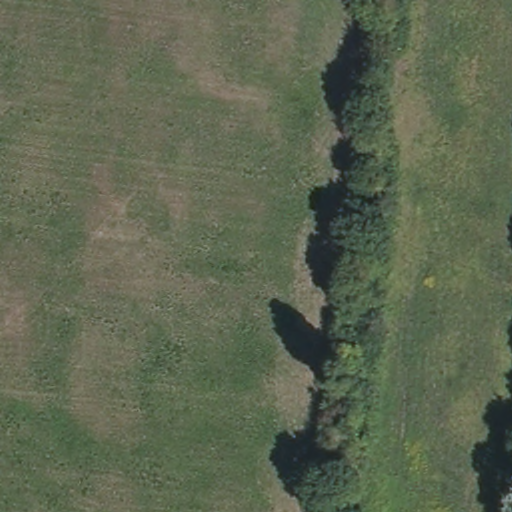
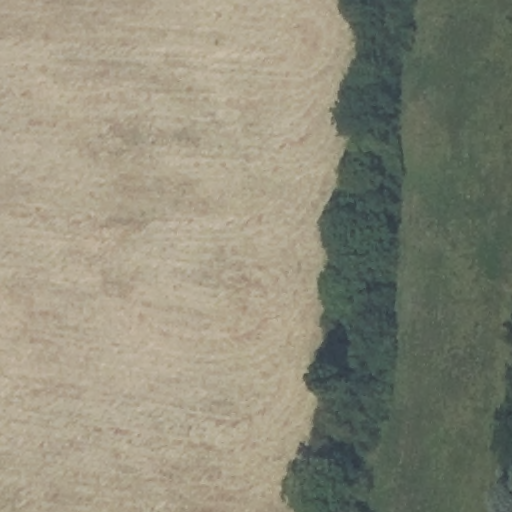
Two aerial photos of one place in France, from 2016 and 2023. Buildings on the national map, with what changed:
[]

